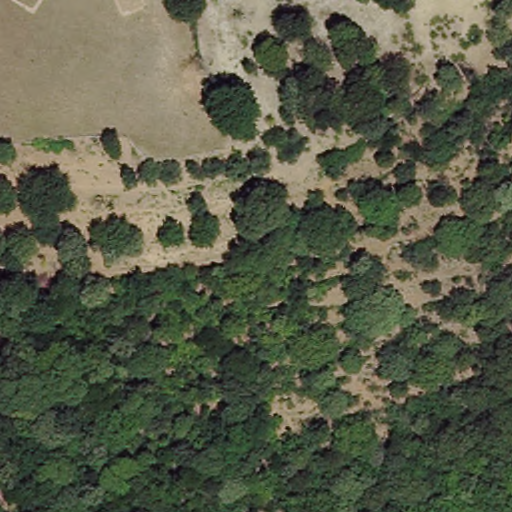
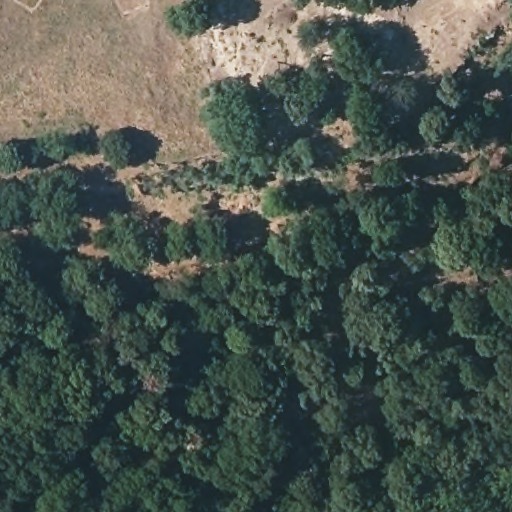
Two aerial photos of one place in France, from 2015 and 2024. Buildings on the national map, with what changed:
unchanged [(411,69),(414,95),(392,95),(391,70),(411,69)]

